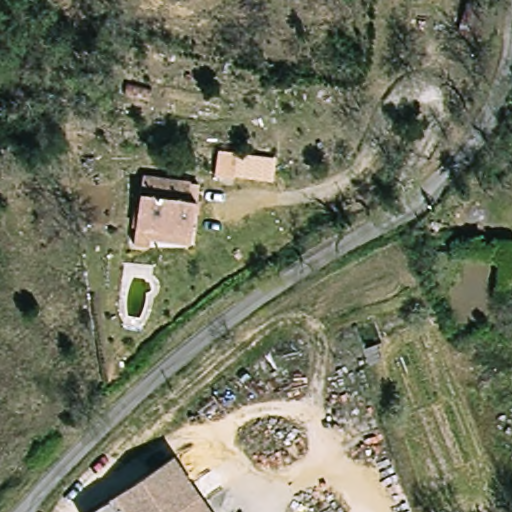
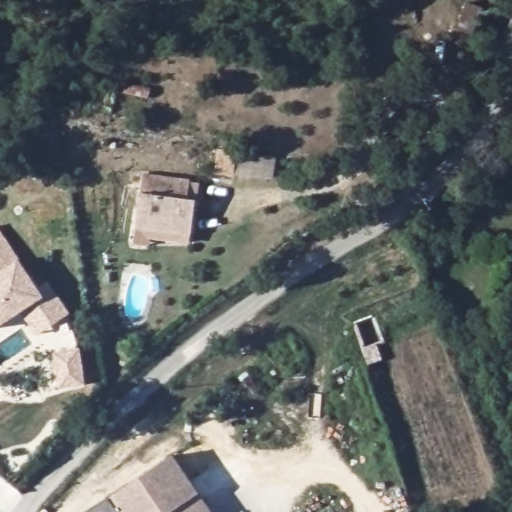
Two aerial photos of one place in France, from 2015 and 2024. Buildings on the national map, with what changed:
unchanged [(240,153),(237,178),(218,175),(221,150),(240,153)]
unchanged [(150,239),(149,247),(135,245),(137,228),(144,175),(179,179),(195,180),(192,197),(188,234),(186,242),(150,239)]
new [(21,313),(0,328),(0,229),(21,258),(40,287),(50,281),(72,313),(39,336),(21,313)]
new [(82,348),(87,385),(61,388),(55,353),(82,348)]
unchanged [(181,457),(214,512),(110,512),(105,502),(181,457)]

